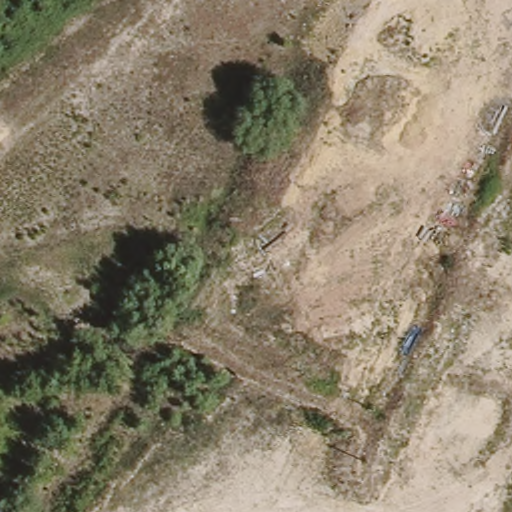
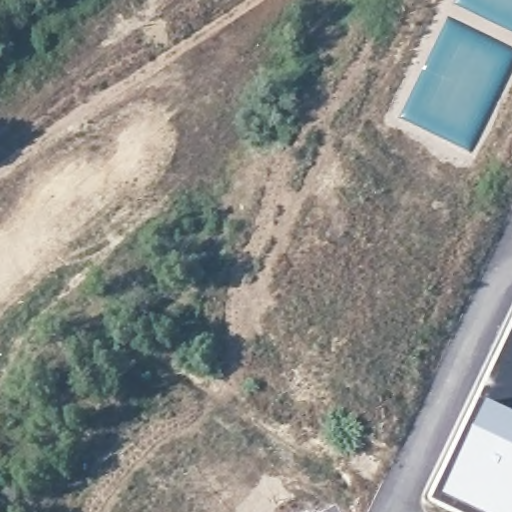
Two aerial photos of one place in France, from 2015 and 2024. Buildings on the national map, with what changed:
new [(512,414),(512,512),(478,512),(444,495),(487,402),(512,414)]

